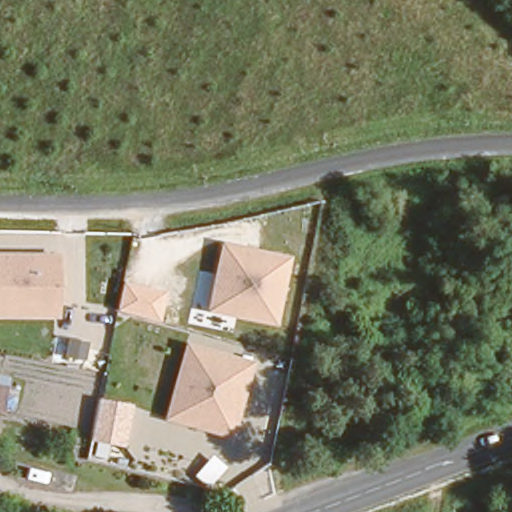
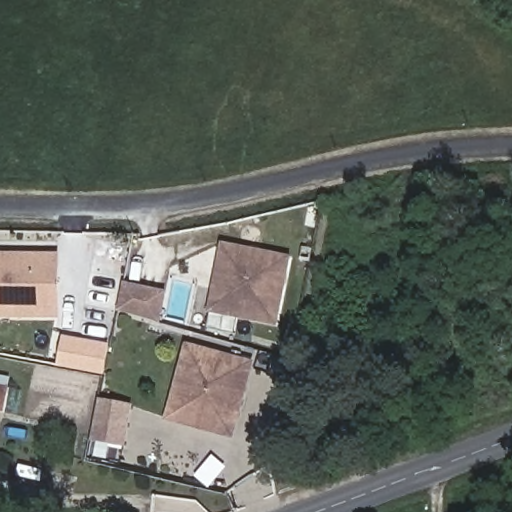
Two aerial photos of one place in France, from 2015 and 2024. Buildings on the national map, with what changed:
unchanged [(280,327),(208,314),(221,243),(293,256),(280,327)]
unchanged [(0,253),(61,255),(62,319),(0,319),(0,253)]
unchanged [(161,323),(118,311),(124,281),(167,293),(161,323)]
new [(62,335),(106,344),(100,371),(56,363),(62,335)]
unchanged [(237,438),(164,420),(187,343),(256,362),(237,438)]
unchanged [(0,410),(0,382),(7,383),(2,411),(0,410)]
unchanged [(125,447),(92,441),(102,398),(134,404),(125,447)]
new [(208,489),(194,477),(211,455),(225,466),(208,489)]

